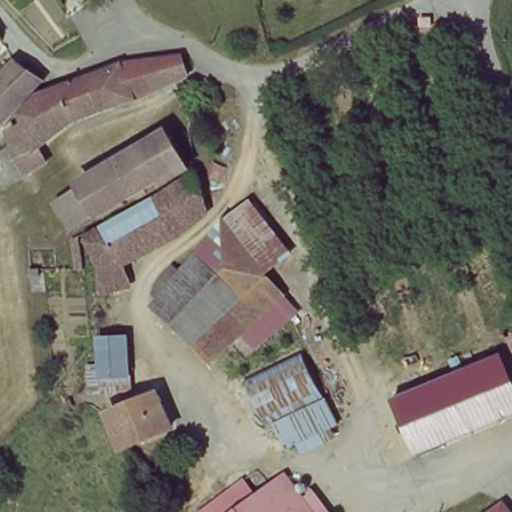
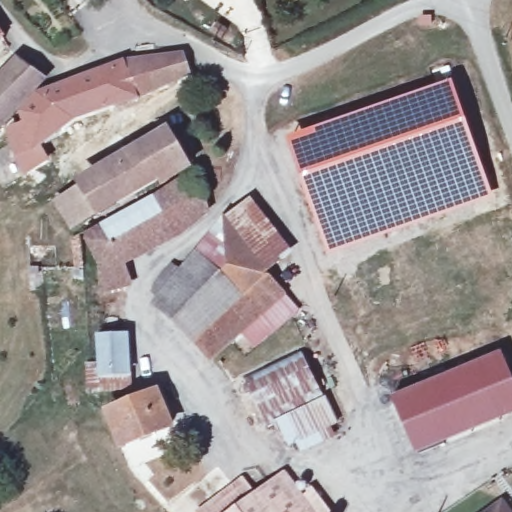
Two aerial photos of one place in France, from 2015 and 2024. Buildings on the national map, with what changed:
unchanged [(0,48),(0,32),(8,41),(0,48)]
unchanged [(53,161),(34,171),(11,136),(28,125),(25,117),(57,97),(91,85),(143,68),(192,60),(196,61),(206,83),(135,104),(78,123),(46,150),(53,161)]
unchanged [(54,84),(4,126),(0,121),(0,92),(30,67),(53,83),(54,84)]
new [(453,79),(495,197),(397,233),(328,256),(311,210),(288,139),(453,79)]
unchanged [(179,240),(128,265),(131,281),(103,290),(83,238),(82,226),(70,233),(54,200),(76,189),(73,174),(165,126),(193,171),(209,217),(179,240)]
unchanged [(20,177),(0,185),(0,184),(0,151),(8,148),(20,177)]
unchanged [(292,253),(268,272),(261,276),(224,227),(256,204),(292,253)]
unchanged [(203,320),(188,331),(149,301),(154,294),(146,286),(161,265),(173,272),(224,227),(261,276),(203,320)]
unchanged [(72,271),(68,241),(83,240),(86,268),(72,271)]
unchanged [(203,320),(261,276),(268,272),(285,293),(215,353),(188,331),(203,320)]
unchanged [(98,340),(122,339),(123,375),(124,389),(100,390),(99,376),(98,340)]
unchanged [(419,455),(393,397),(502,350),(512,374),(512,418),(419,455)]
unchanged [(168,422),(125,446),(106,416),(151,391),(168,422)]
unchanged [(326,430),(306,438),(297,442),(289,445),(281,423),(280,421),(329,401),(341,425),(326,430)]
unchanged [(242,476),(256,495),(233,512),(193,512),(193,511),(242,476)]
unchanged [(284,478),(309,512),(233,512),(256,495),(284,478)]
unchanged [(498,512),(488,512),(494,507),(498,512)]

